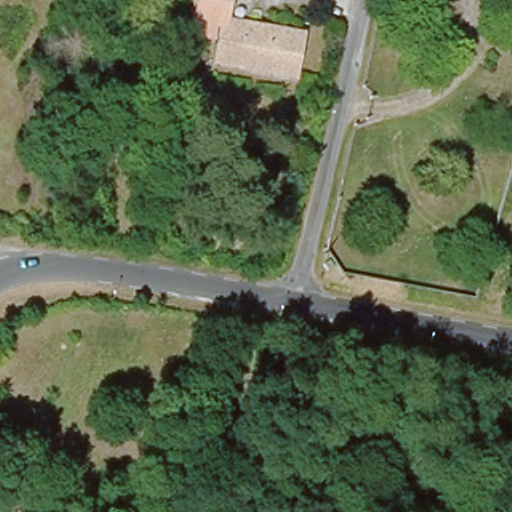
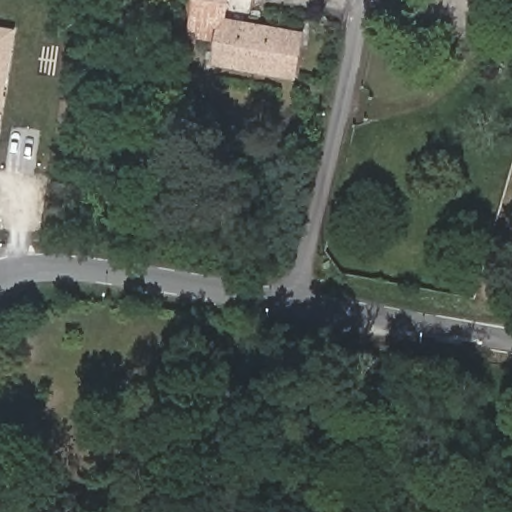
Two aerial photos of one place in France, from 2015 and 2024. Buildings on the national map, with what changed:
unchanged [(217,27),(209,26),(206,40),(186,37),(193,0),(226,0),(222,21),(299,37),(290,82),(210,67),(217,27)]
new [(0,115),(0,26),(16,29),(0,115)]

